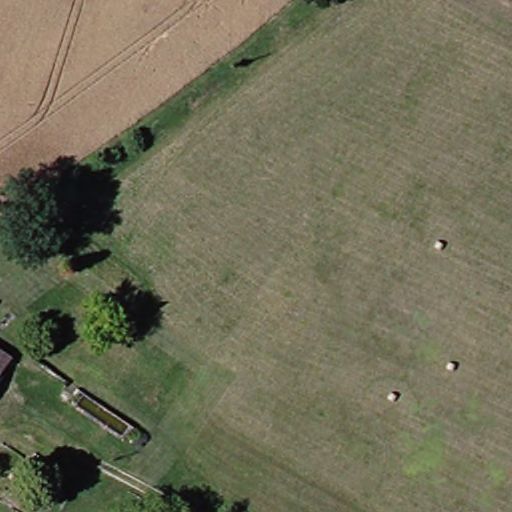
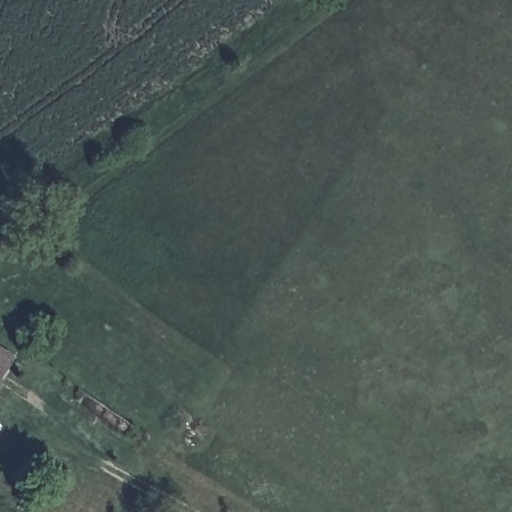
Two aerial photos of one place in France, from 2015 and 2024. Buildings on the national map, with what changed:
unchanged [(2,354),(0,357),(0,352),(2,354)]

